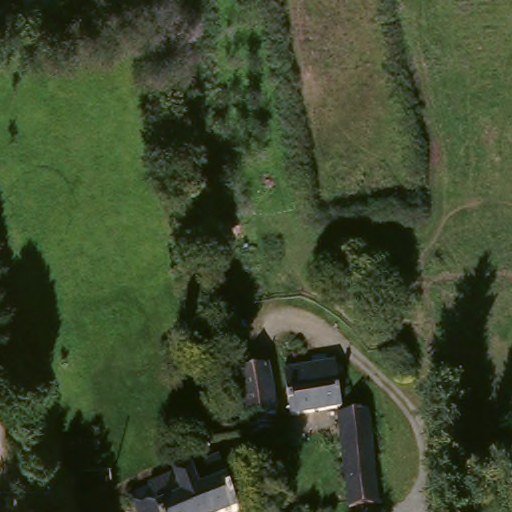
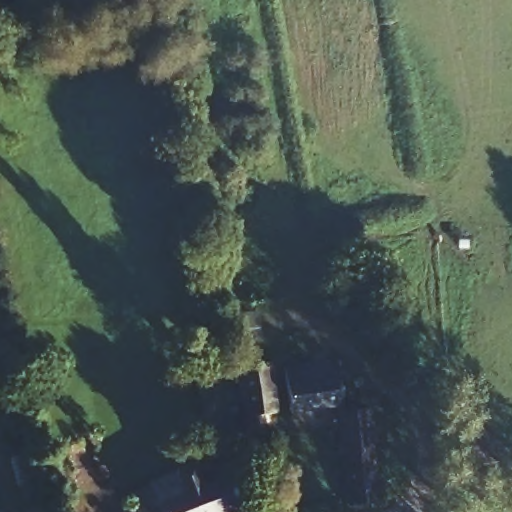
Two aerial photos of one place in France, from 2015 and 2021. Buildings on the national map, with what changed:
unchanged [(44,34),(4,43),(0,27),(0,0),(37,0),(44,34)]
unchanged [(275,366),(293,363),(324,359),(332,414),(284,419),(279,386),(275,366)]
unchanged [(240,424),(234,371),(239,370),(266,366),(272,418),(264,420),(240,424)]
unchanged [(366,411),(376,509),(354,512),(343,512),(332,414),(366,411)]
unchanged [(220,455),(240,507),(229,512),(127,512),(122,495),(220,455)]

